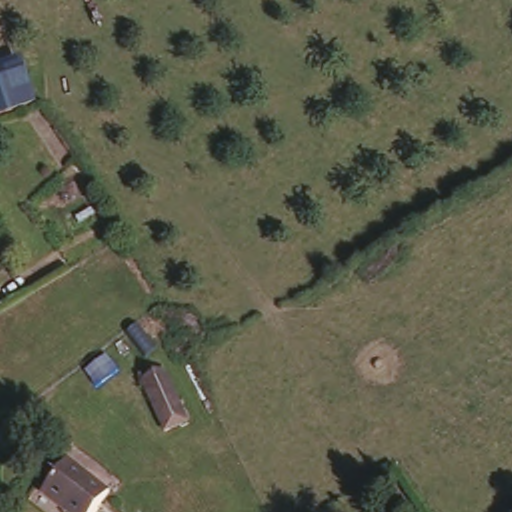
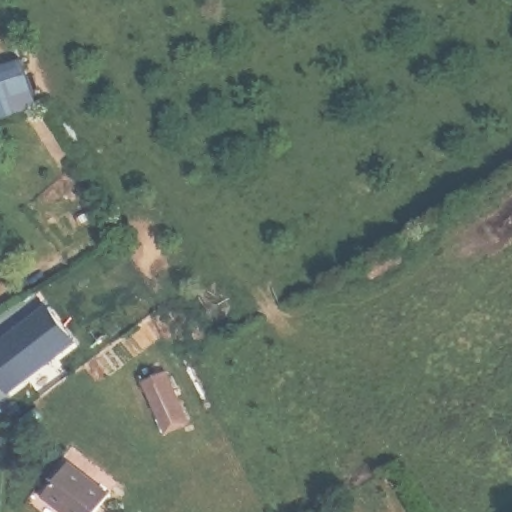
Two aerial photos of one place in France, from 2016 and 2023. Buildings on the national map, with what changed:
unchanged [(35,105),(0,119),(0,65),(17,58),(35,105)]
demolished [(76,152),(61,164),(30,116),(44,106),(76,152)]
new [(73,341),(55,356),(53,353),(24,374),(26,377),(7,392),(0,382),(0,341),(46,306),(73,341)]
unchanged [(157,366),(185,428),(164,438),(135,378),(157,366)]
unchanged [(66,462),(106,495),(92,512),(60,512),(58,511),(40,496),(44,491),(66,462)]

